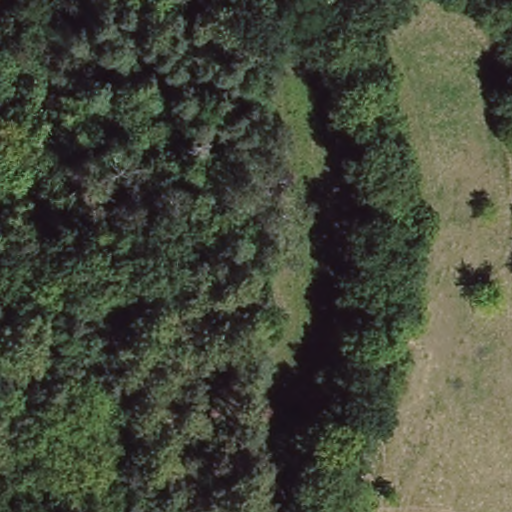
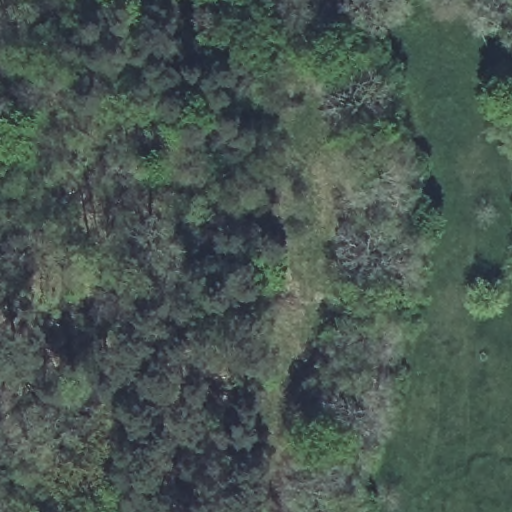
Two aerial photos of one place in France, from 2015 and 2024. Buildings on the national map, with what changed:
[]

